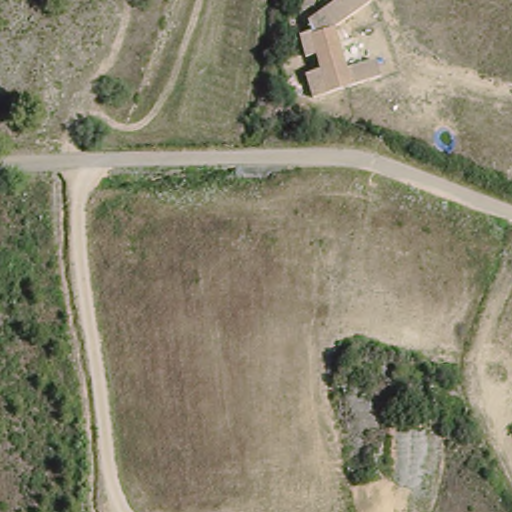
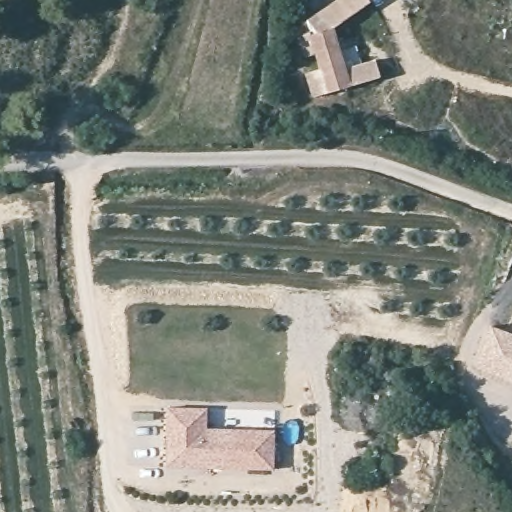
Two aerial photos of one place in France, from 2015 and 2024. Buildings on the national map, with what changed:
unchanged [(315,9),(334,0),(380,0),(380,1),(338,20),(320,21),(315,9)]
unchanged [(344,76),(317,78),(299,79),(297,54),(312,52),(312,37),(300,38),(298,21),(311,21),(320,21),(338,20),(342,61),(371,60),(373,74),(344,76)]
new [(512,332),(512,384),(470,366),(488,323),(512,332)]
new [(277,432),(276,470),(170,467),(172,409),(210,410),(210,430),(277,432)]

